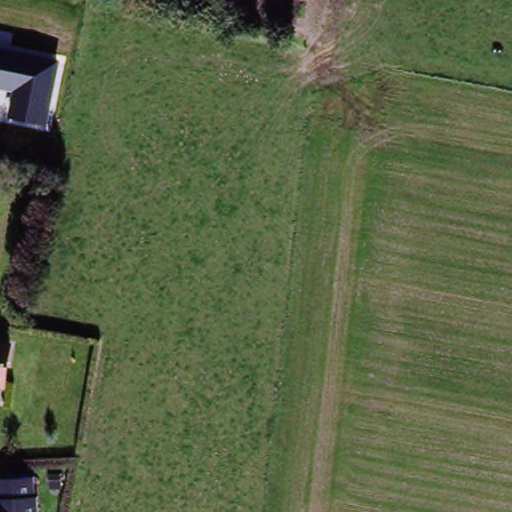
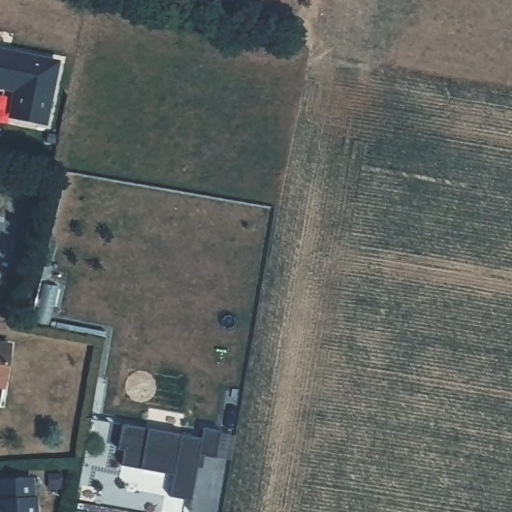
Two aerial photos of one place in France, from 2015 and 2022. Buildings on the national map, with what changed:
unchanged [(57,64),(47,127),(11,119),(15,91),(0,89),(0,52),(57,64)]
unchanged [(15,350),(8,392),(0,391),(0,348),(15,350)]
new [(124,430),(203,447),(207,430),(225,433),(219,461),(203,457),(194,503),(172,499),(176,478),(124,467),(127,452),(120,451),(124,430)]
unchanged [(38,505),(41,505),(41,512),(0,512),(0,507),(3,507),(1,486),(37,485),(38,505)]

